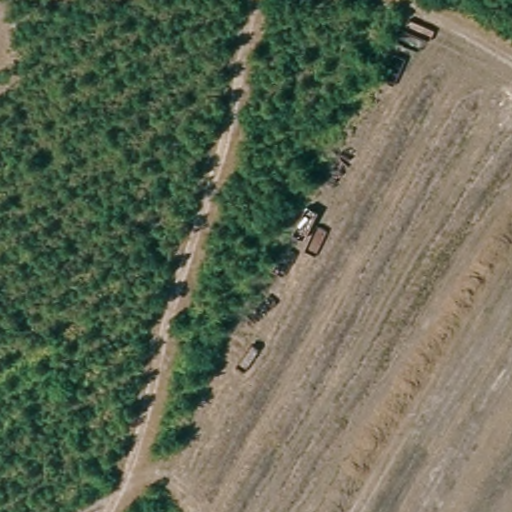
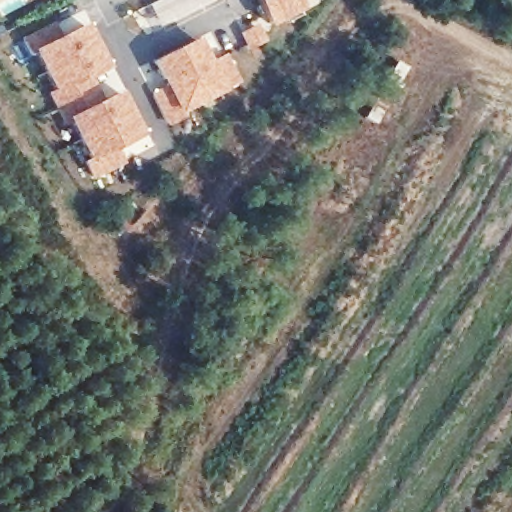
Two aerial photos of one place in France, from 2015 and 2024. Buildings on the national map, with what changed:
new [(270,22),(259,0),(295,0),(300,8),(270,22)]
new [(116,150),(122,164),(94,177),(87,162),(89,160),(71,121),(67,124),(53,95),(57,94),(37,54),(32,55),(25,42),(56,27),(60,37),(87,25),(109,68),(82,82),(95,105),(121,92),(142,136),(116,150)]
new [(170,123),(155,95),(167,89),(166,85),(162,87),(151,64),(199,39),(211,64),(225,57),(237,82),(224,90),(181,111),(182,115),(170,123)]

